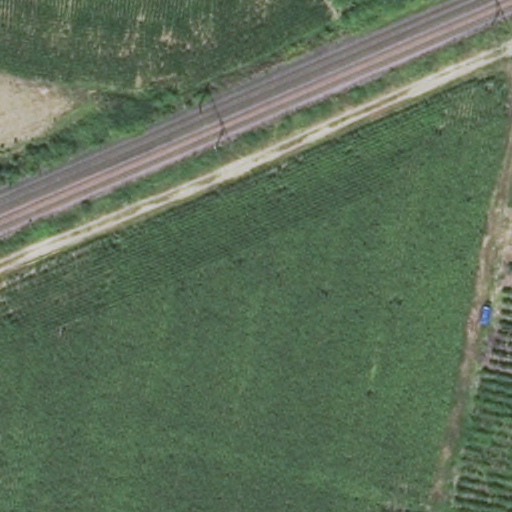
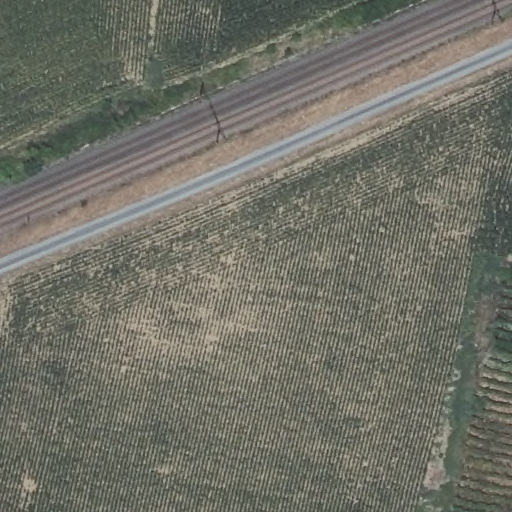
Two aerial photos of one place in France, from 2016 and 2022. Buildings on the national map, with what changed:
[]

